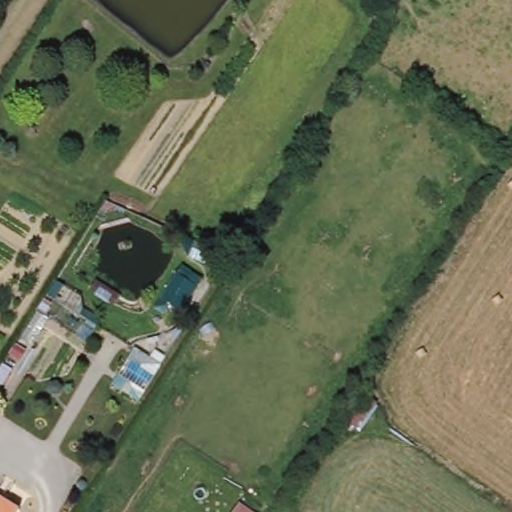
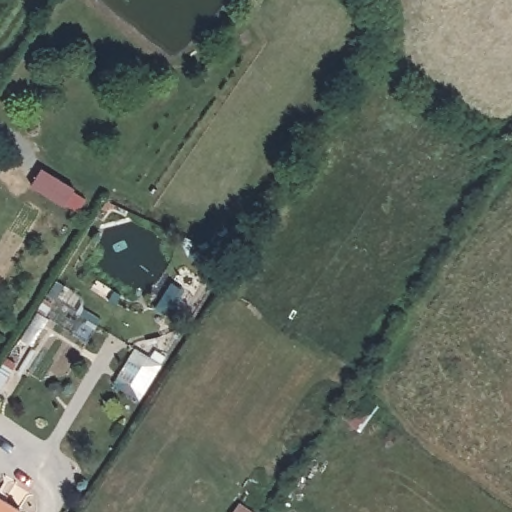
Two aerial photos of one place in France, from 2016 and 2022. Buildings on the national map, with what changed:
unchanged [(205,282),(182,319),(156,303),(179,265),(205,282)]
unchanged [(17,512),(0,512),(0,498),(18,509),(17,512)]

